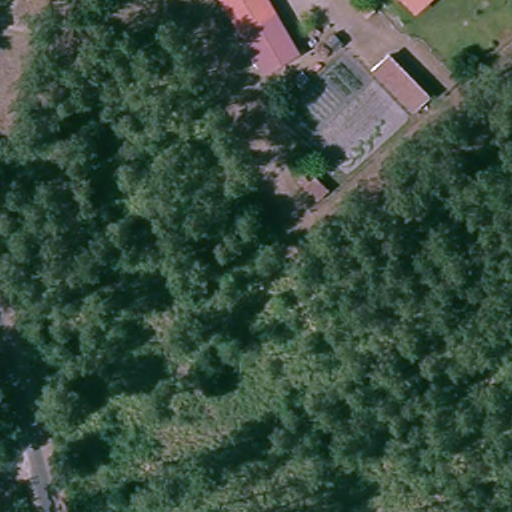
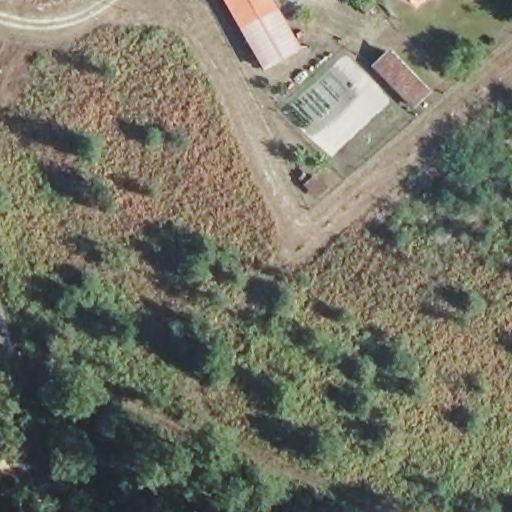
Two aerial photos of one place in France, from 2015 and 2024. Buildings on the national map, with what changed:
unchanged [(262,72),(224,0),(274,0),(302,53),(262,72)]
unchanged [(417,4),(413,0),(422,0),(417,4)]
unchanged [(396,51),(429,91),(411,108),(377,68),(396,51)]

